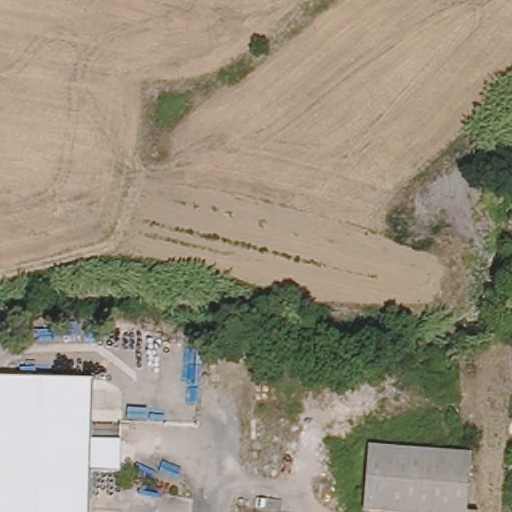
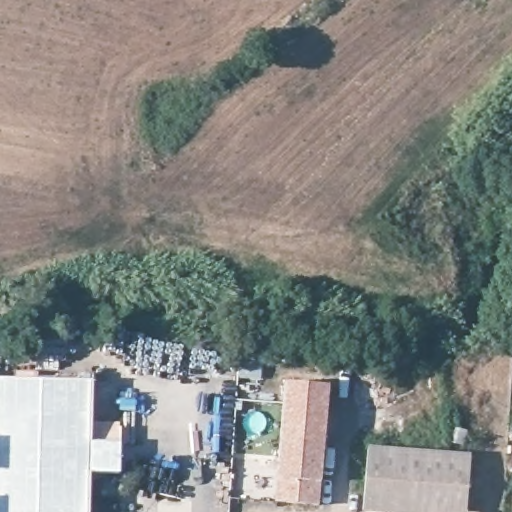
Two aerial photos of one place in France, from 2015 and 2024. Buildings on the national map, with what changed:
unchanged [(20,364),(81,368),(81,385),(19,382),(20,364)]
new [(280,381),(324,384),(319,452),(276,450),(280,381)]
unchanged [(19,382),(81,385),(94,386),(92,435),(121,435),(120,451),(119,482),(90,480),(89,512),(0,512),(0,382),(19,382)]
unchanged [(469,453),(467,508),(481,509),(481,512),(409,512),(365,510),(370,447),(469,453)]
new [(276,450),(319,452),(316,504),(273,502),(276,450)]

